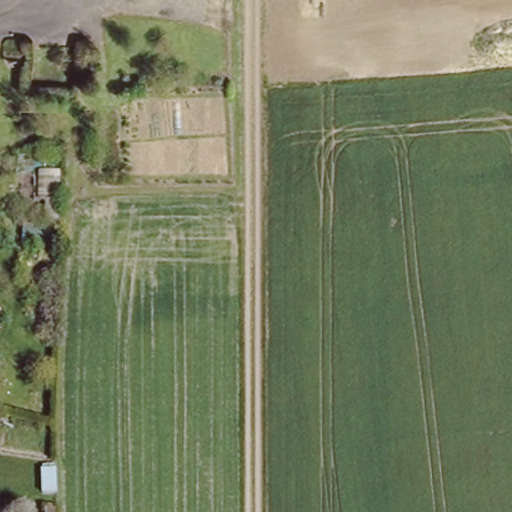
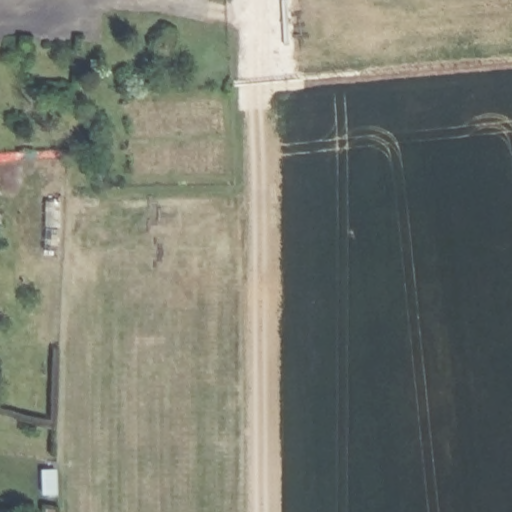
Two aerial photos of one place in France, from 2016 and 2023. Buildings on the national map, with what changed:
[]

